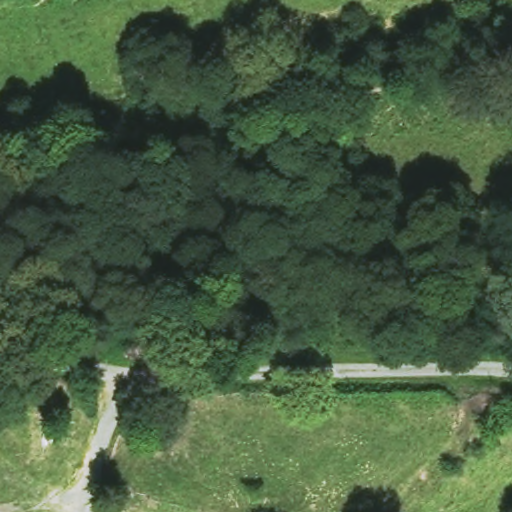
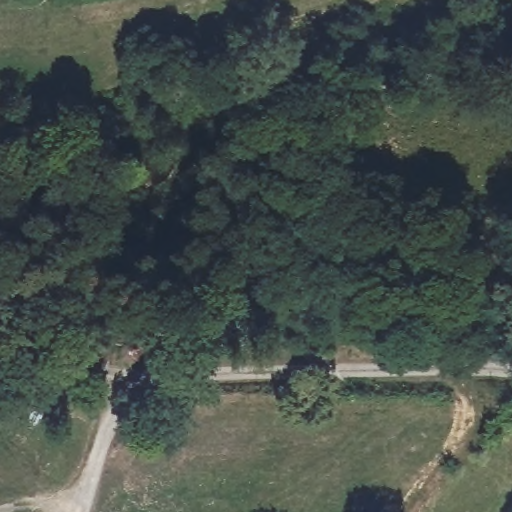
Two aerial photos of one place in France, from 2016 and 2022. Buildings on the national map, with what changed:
unchanged [(73,418),(72,458),(87,458),(87,474),(45,473),(46,416),(73,418)]

